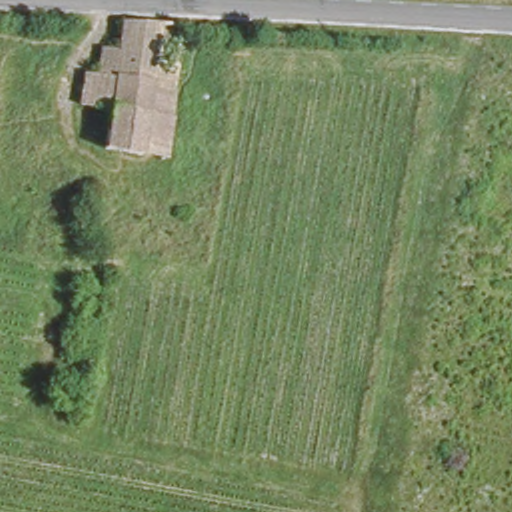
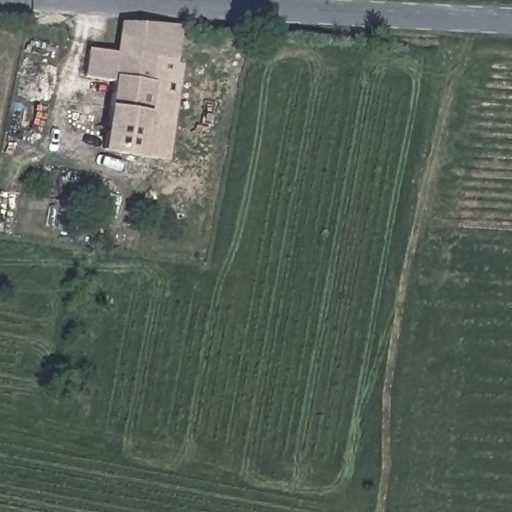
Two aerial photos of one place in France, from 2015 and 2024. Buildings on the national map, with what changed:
unchanged [(169,81),(151,79),(147,100),(139,156),(103,151),(103,143),(104,122),(78,119),(84,74),(100,76),(102,53),(104,53),(109,53),(119,54),(121,20),(180,24),(179,25),(169,81)]

